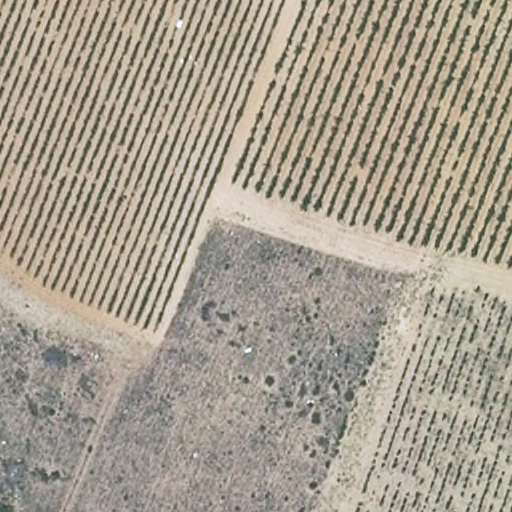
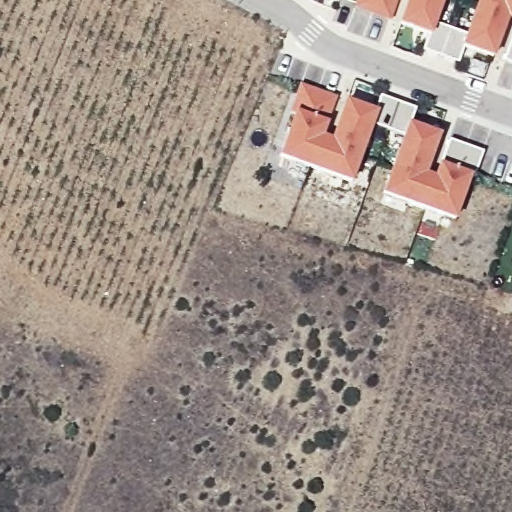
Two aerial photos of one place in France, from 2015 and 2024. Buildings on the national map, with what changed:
new [(387,22),(352,9),(355,0),(395,0),(387,22)]
new [(504,21),(490,58),(462,48),(455,64),(422,51),(427,36),(396,25),(405,0),(442,0),(434,24),(464,34),(476,0),(512,0),(512,23),(504,21)]
new [(502,61),(509,36),(512,26),(512,65),(502,61)]
new [(325,124),(320,138),(329,139),(342,101),(374,112),(378,97),(412,109),(407,124),(438,135),(424,174),(432,176),(437,165),(447,140),(480,152),(472,178),(469,177),(452,222),(379,194),(399,136),(370,126),(349,184),(277,158),(292,114),(289,114),(297,86),(334,97),(325,124)]

